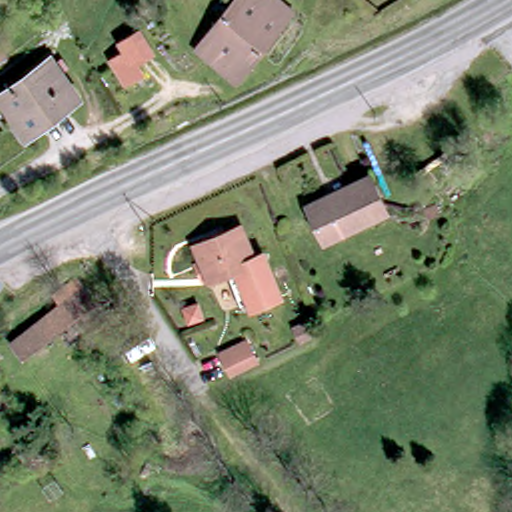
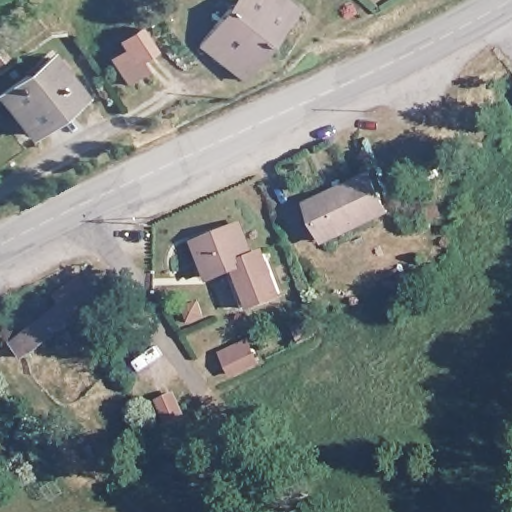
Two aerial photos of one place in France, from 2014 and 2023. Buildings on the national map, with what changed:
unchanged [(249,80),(206,46),(243,0),(288,0),(303,12),(249,80)]
unchanged [(158,54),(143,64),(150,74),(131,86),(114,60),(128,51),(123,42),(143,29),(158,54)]
unchanged [(3,52),(0,55),(0,49),(3,52)]
unchanged [(82,97),(33,139),(3,102),(52,62),(82,97)]
unchanged [(393,220),(332,248),(310,211),(373,182),(393,220)]
unchanged [(222,262),(207,267),(199,270),(193,255),(201,252),(195,236),(235,220),(248,252),(260,247),(275,287),(238,301),(222,262)]
unchanged [(95,307),(24,364),(13,347),(57,310),(51,302),(75,282),(95,307)]
unchanged [(190,322),(185,308),(198,303),(203,318),(190,322)]
unchanged [(293,332),(307,326),(313,340),(300,346),(293,332)]
unchanged [(220,356),(246,344),(249,350),(256,366),(230,377),(222,362),(220,356)]
unchanged [(55,422),(69,409),(78,402),(93,420),(85,427),(70,440),(55,422)]

